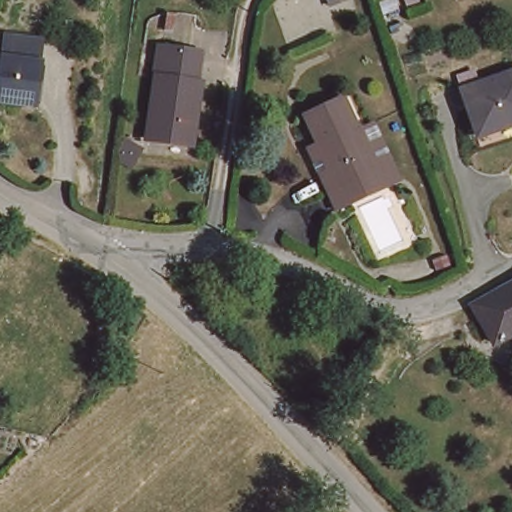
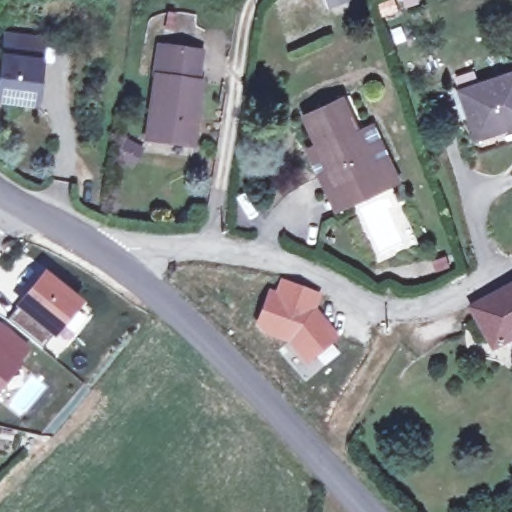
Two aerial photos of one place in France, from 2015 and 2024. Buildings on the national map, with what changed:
unchanged [(325,0),(344,0),(347,7),(330,12),(325,0)]
unchanged [(0,97),(0,54),(2,38),(37,42),(34,83),(32,101),(25,100),(0,97)]
unchanged [(190,55),(201,57),(197,83),(190,145),(147,137),(158,51),(190,55)]
unchanged [(480,136),(462,93),(457,82),(476,75),(480,87),(512,76),(512,125),(480,136)]
unchanged [(304,115),(344,99),(360,129),(379,165),(340,183),(320,146),(304,115)]
unchanged [(320,146),(340,183),(379,165),(360,129),(369,125),(395,177),(335,204),(307,152),(320,146)]
unchanged [(114,127),(128,132),(121,149),(107,142),(114,127)]
new [(44,278),(77,307),(40,352),(6,323),(44,278)]
unchanged [(491,339),(467,303),(512,281),(512,328),(491,339)]
new [(289,348),(262,338),(257,332),(270,301),(277,304),(284,287),(317,301),(311,317),(334,346),(305,369),(289,348)]
new [(11,366),(14,368),(0,384),(0,334),(22,352),(11,366)]

